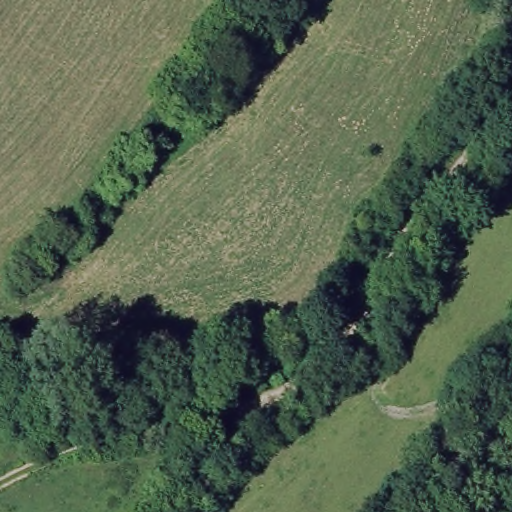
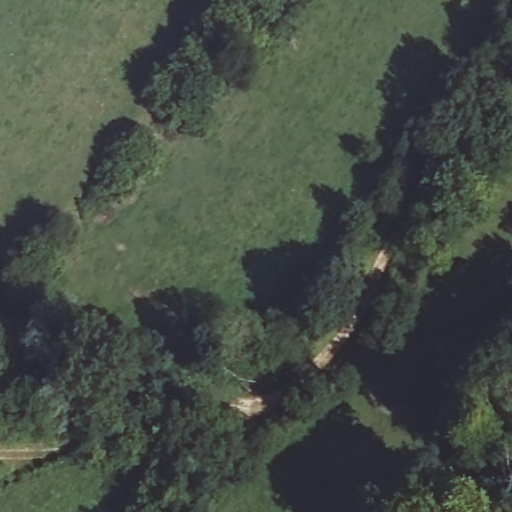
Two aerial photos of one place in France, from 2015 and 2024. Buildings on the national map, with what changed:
[]

